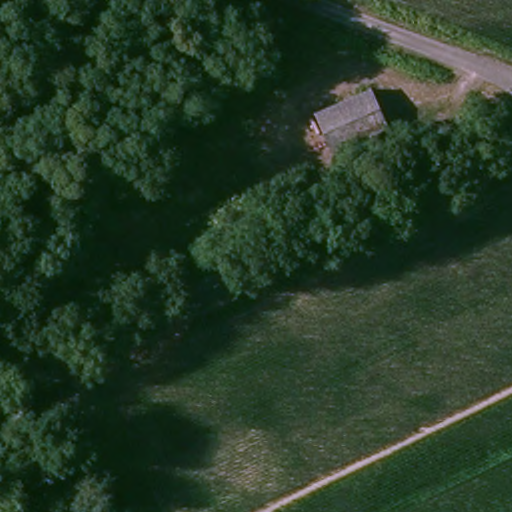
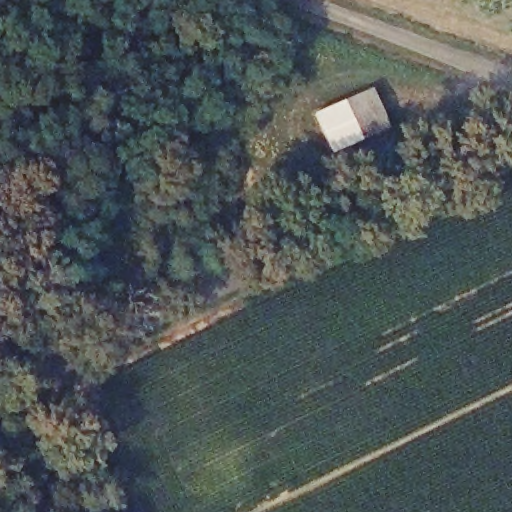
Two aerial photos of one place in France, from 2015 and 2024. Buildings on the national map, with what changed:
unchanged [(374,83),(390,119),(335,145),(318,109),(374,83)]

